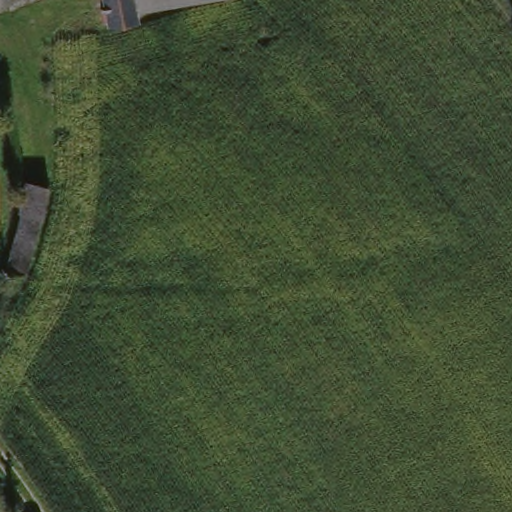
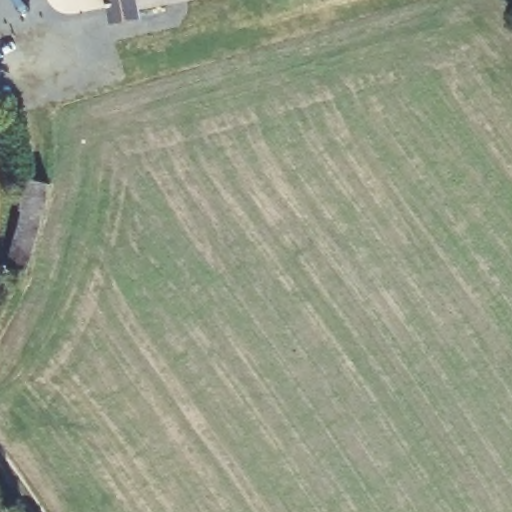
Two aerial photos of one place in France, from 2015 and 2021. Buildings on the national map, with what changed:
unchanged [(104,0),(134,0),(136,9),(137,19),(108,25),(104,0)]
unchanged [(134,0),(196,0),(136,9),(134,0)]
unchanged [(52,189),(22,281),(2,272),(31,180),(52,189)]

